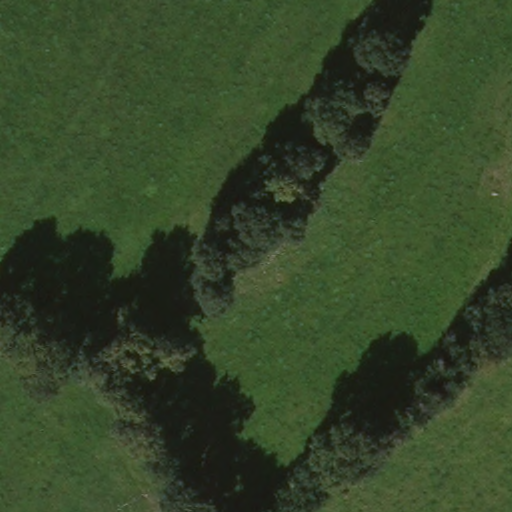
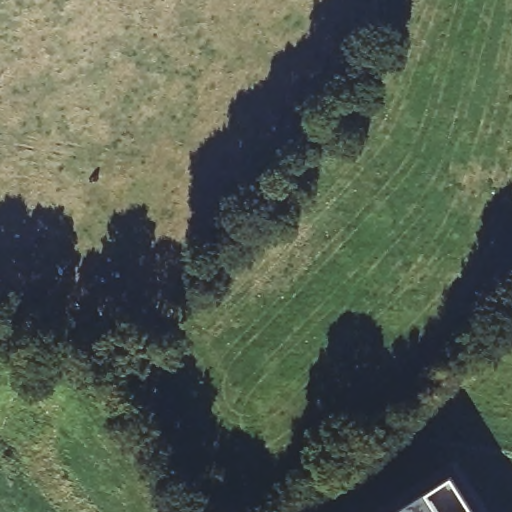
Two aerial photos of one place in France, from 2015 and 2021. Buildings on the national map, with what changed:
new [(393,512),(407,502),(449,466),(484,512),(393,512)]

